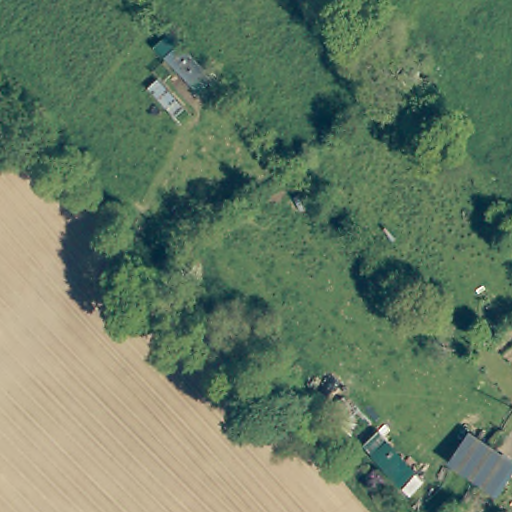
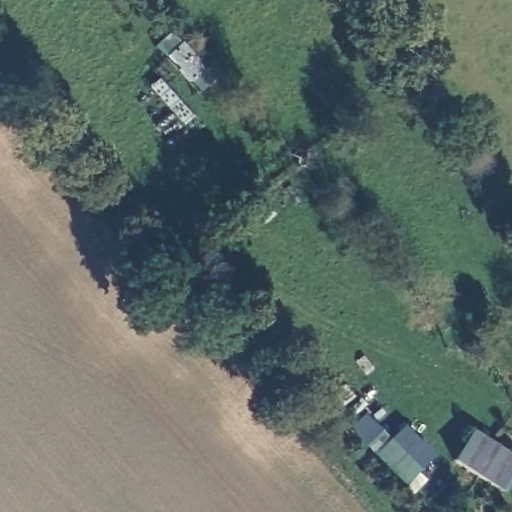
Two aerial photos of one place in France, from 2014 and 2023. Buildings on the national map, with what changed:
unchanged [(156,44),(170,32),(179,43),(167,55),(156,44)]
unchanged [(168,55),(180,44),(202,69),(212,78),(199,90),(190,80),(168,55)]
new [(401,487),(349,428),(366,414),(388,437),(403,423),(432,455),(416,471),(425,479),(409,495),(401,487)]
unchanged [(472,432),(496,448),(512,458),(512,475),(501,492),(475,475),(453,461),(472,432)]

